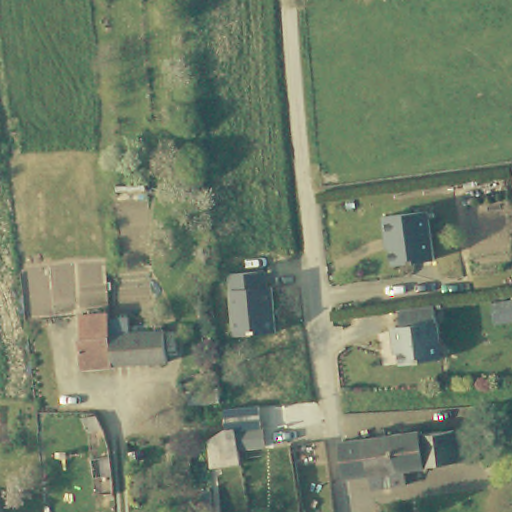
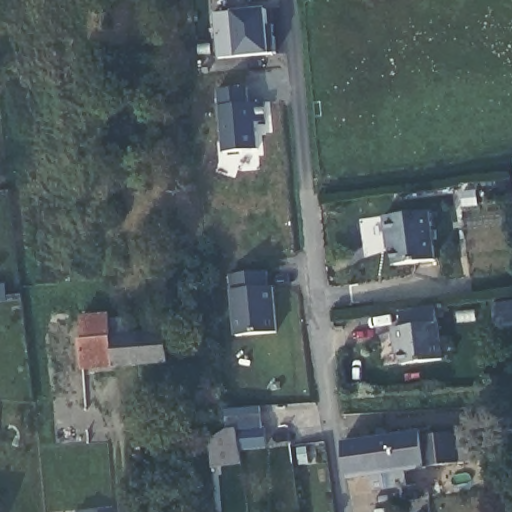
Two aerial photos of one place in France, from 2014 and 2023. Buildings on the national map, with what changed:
new [(276,55),(212,60),(209,9),(270,4),(276,55)]
new [(250,103),(263,102),(265,120),(257,121),(258,148),(225,151),(219,89),(247,87),(250,103)]
unchanged [(387,235),(385,219),(385,214),(432,208),(433,213),(438,258),(396,263),(394,247),(389,247),(387,235)]
unchanged [(231,274),(269,272),(271,287),(277,287),(278,334),(237,336),(231,274)]
unchanged [(439,360),(401,365),(399,344),(394,345),(392,327),(400,326),(399,309),(434,305),(439,360)]
unchanged [(72,329),(71,321),(105,316),(106,327),(125,326),(126,338),(157,337),(158,362),(158,369),(108,371),(77,375),(72,329)]
unchanged [(43,337),(25,338),(24,328),(43,327),(43,337)]
unchanged [(41,420),(33,420),(32,413),(40,413),(40,417),(41,420)]
unchanged [(373,471),(355,474),(354,475),(349,438),(356,438),(386,432),(406,429),(426,430),(433,429),(462,426),(482,424),(485,456),(466,458),(428,463),(411,465),(409,465),(411,481),(375,487),(373,471)]
unchanged [(258,425),(260,443),(234,445),(231,427),(258,425)]
unchanged [(233,462),(207,464),(205,439),(221,427),(222,427),(230,427),(233,462)]

